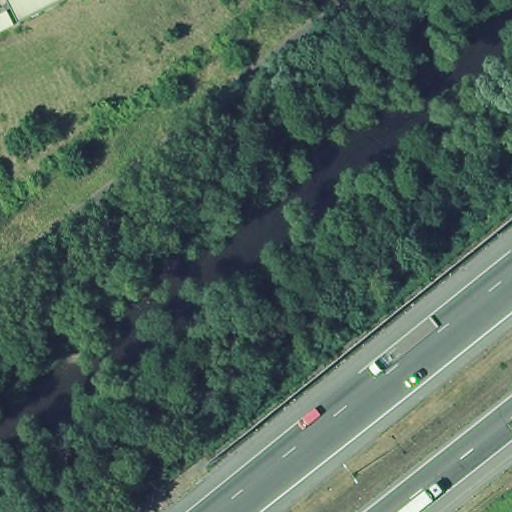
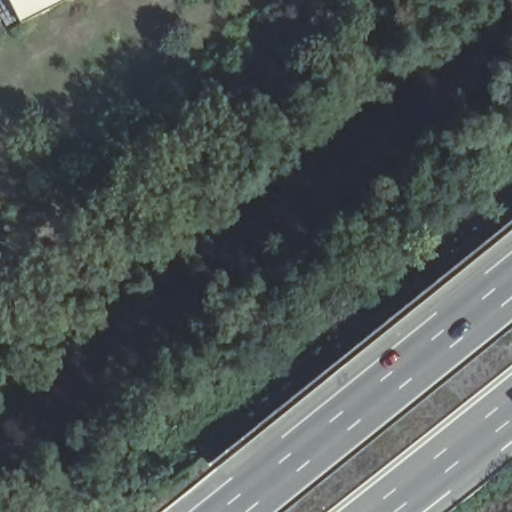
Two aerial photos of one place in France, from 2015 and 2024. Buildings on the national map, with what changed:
unchanged [(10,0),(67,0),(21,22),(10,0)]

